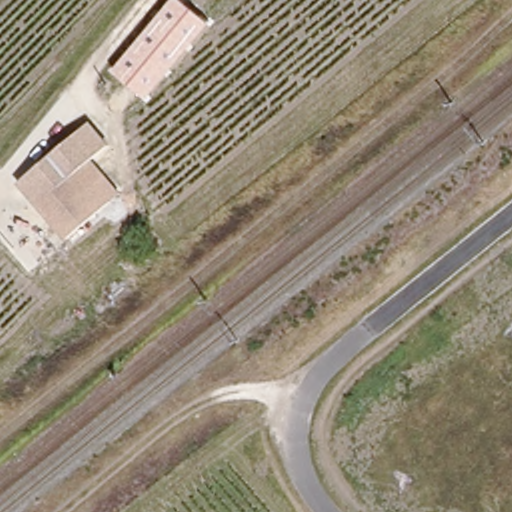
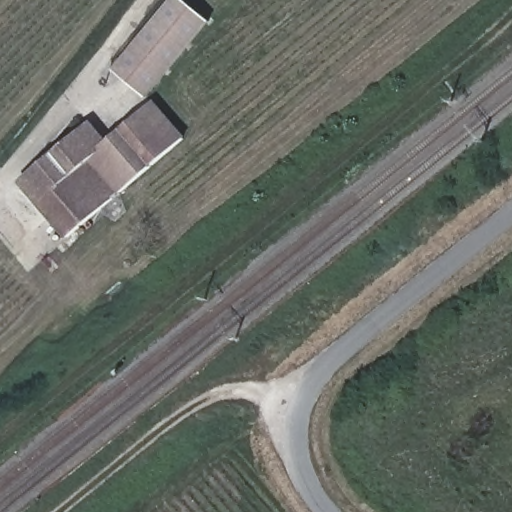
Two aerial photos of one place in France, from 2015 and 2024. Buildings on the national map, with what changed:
unchanged [(114,71),(173,0),(184,0),(212,22),(148,99),(114,71)]
new [(121,129),(154,101),(184,137),(151,166),(121,192),(94,157),(110,144),(106,139),(121,129)]
unchanged [(94,157),(121,192),(68,238),(19,180),(90,120),(110,144),(94,157)]

